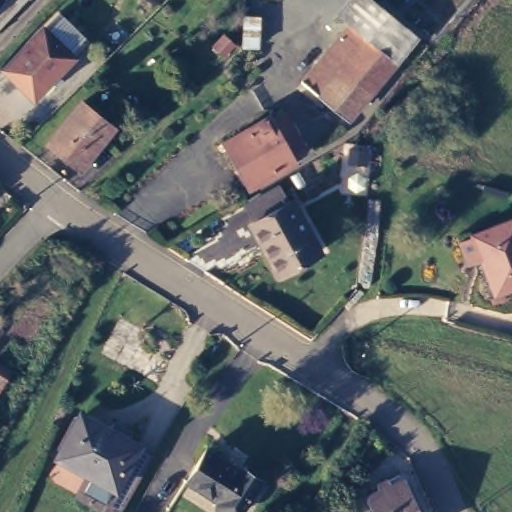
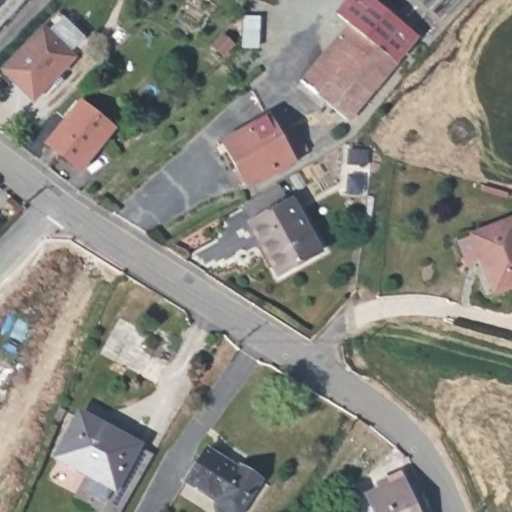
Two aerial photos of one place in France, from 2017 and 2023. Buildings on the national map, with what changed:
unchanged [(0,5),(0,0),(1,0),(3,2),(0,5)]
unchanged [(0,28),(0,5),(3,2),(1,0),(26,0),(0,28)]
unchanged [(136,0),(151,0),(156,5),(148,13),(136,0)]
unchanged [(303,86),(306,81),(354,23),(342,13),(354,0),(376,0),(421,37),(351,118),(329,101),(326,105),(303,86)]
unchanged [(60,93),(55,88),(39,105),(8,75),(63,17),(93,47),(62,80),(68,86),(60,93)]
unchanged [(258,18),(257,47),(242,47),(243,17),(258,18)]
unchanged [(233,45),(223,55),(213,47),(223,36),(233,45)]
unchanged [(67,160),(53,149),(86,107),(118,133),(89,169),(84,174),(67,160)]
unchanged [(269,116),(271,120),(284,112),(305,150),(291,157),(294,161),(248,188),(223,143),(269,116)]
unchanged [(289,187),(298,203),(300,202),(328,253),(289,275),(261,223),(263,222),(254,206),(289,187)]
unchanged [(512,220),(512,287),(494,293),(472,236),(512,220)]
unchanged [(0,391),(0,365),(11,371),(0,391)]
unchanged [(53,457),(75,416),(103,431),(108,423),(126,433),(123,441),(148,455),(116,512),(100,512),(88,505),(78,500),(90,477),(53,457)]
unchanged [(241,467),(261,481),(240,512),(217,512),(216,510),(216,507),(216,505),(218,501),(186,480),(206,450),(238,470),(241,467)]
unchanged [(373,512),(367,497),(381,491),(379,484),(386,481),(388,488),(403,481),(416,512),(373,512)]

